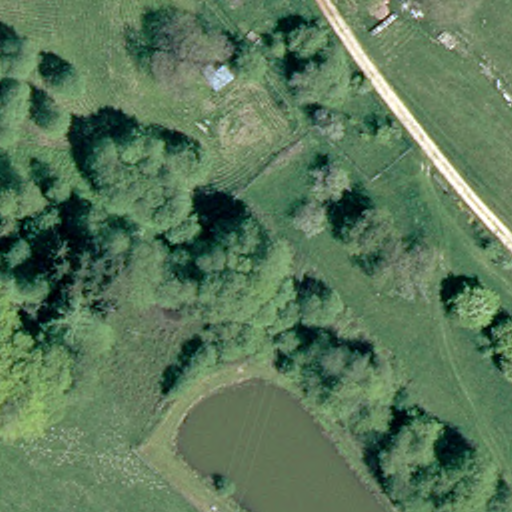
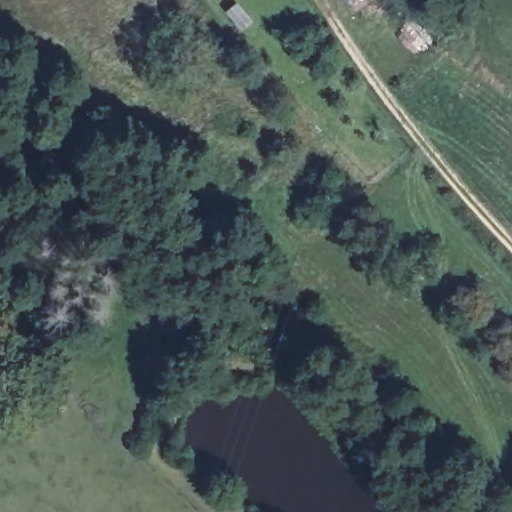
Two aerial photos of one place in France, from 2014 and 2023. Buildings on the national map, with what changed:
unchanged [(226,130),(203,108),(223,94),(242,109),(226,130)]

